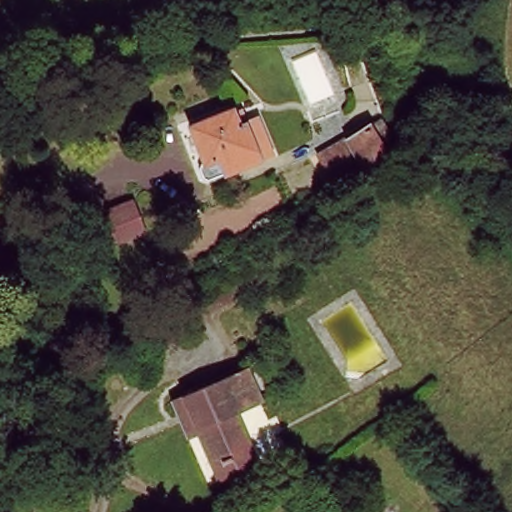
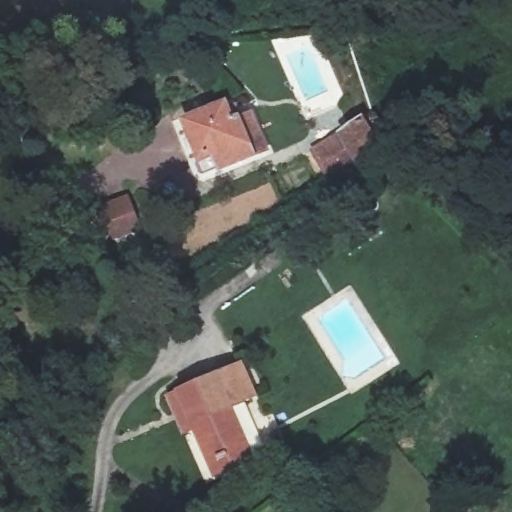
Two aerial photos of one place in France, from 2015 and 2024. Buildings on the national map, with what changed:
unchanged [(190,164),(195,161),(182,126),(225,108),(232,125),(237,125),(255,118),(267,150),(250,157),(197,180),(190,164)]
unchanged [(314,149),(342,131),(342,130),(363,117),(380,145),(357,159),(330,179),(314,149)]
unchanged [(142,230),(115,242),(103,211),(130,200),(142,230)]
unchanged [(210,463),(197,433),(182,439),(164,400),(179,393),(240,369),(253,402),(228,412),(251,464),(234,471),(215,478),(210,463)]

